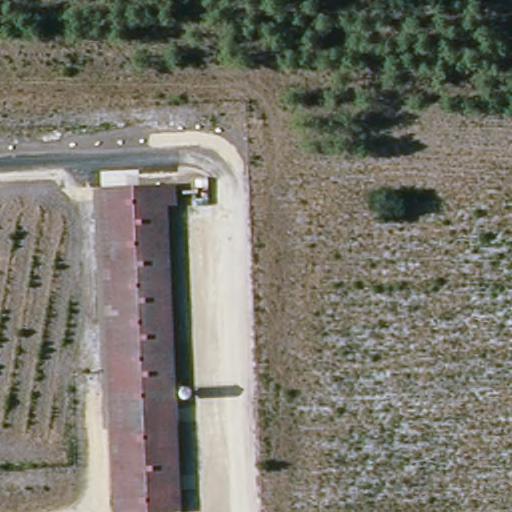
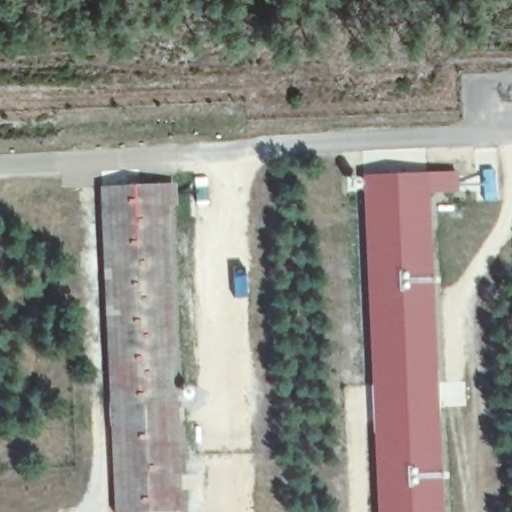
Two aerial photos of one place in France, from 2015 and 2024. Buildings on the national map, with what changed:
new [(460,192),(430,194),(443,512),(378,512),(364,177),(458,172),(460,192)]
unchanged [(115,512),(106,181),(170,180),(172,512),(115,512)]

